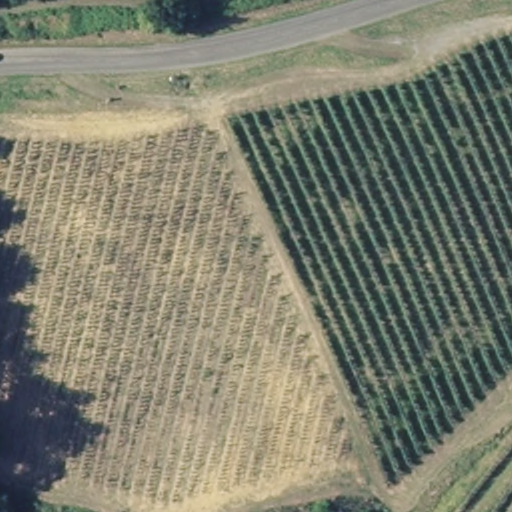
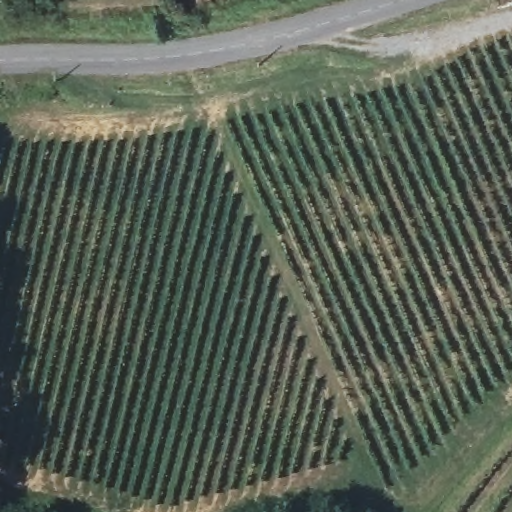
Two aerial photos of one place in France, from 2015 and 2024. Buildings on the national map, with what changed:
[]

